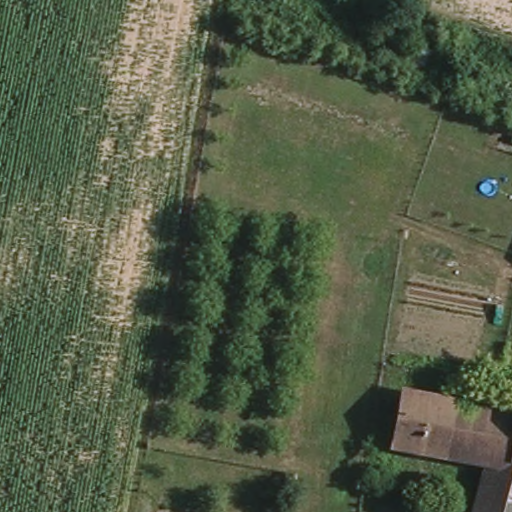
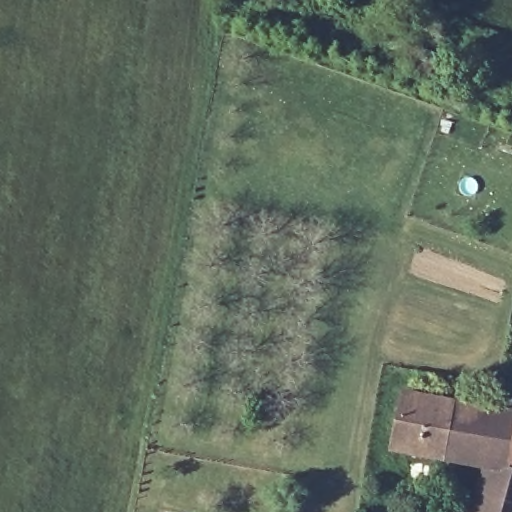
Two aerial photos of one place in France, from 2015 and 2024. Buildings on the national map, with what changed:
unchanged [(394,438),(406,384),(505,405),(512,406),(512,430),(506,465),(483,460),(394,438)]
unchanged [(512,430),(512,466),(506,465),(512,430)]
unchanged [(483,460),(506,465),(495,512),(469,512),(483,460)]
unchanged [(385,467),(377,505),(367,503),(375,466),(385,467)]

